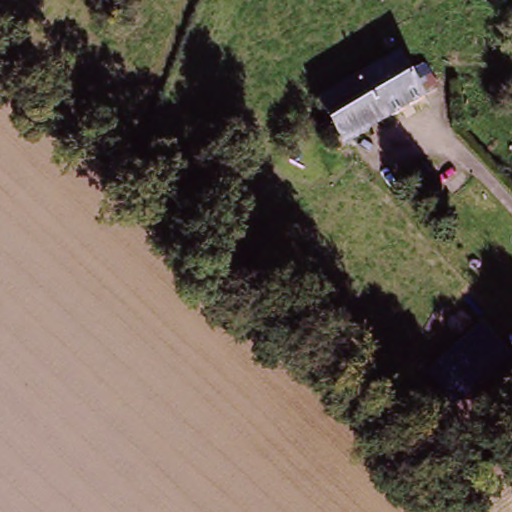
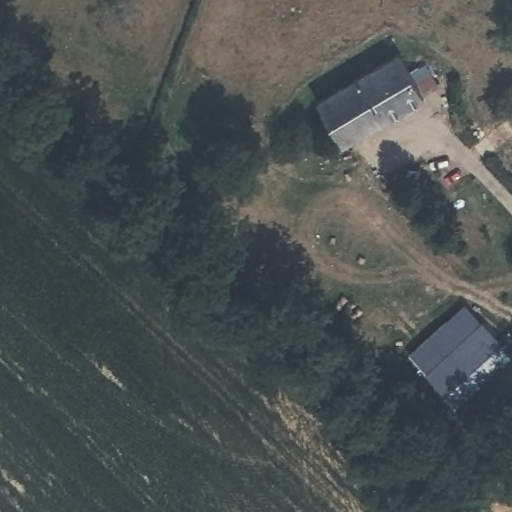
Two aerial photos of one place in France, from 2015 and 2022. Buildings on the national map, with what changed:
unchanged [(425,96),(346,141),(326,104),(404,61),(425,96)]
new [(512,359),(457,409),(408,353),(465,302),(512,353),(512,359)]

